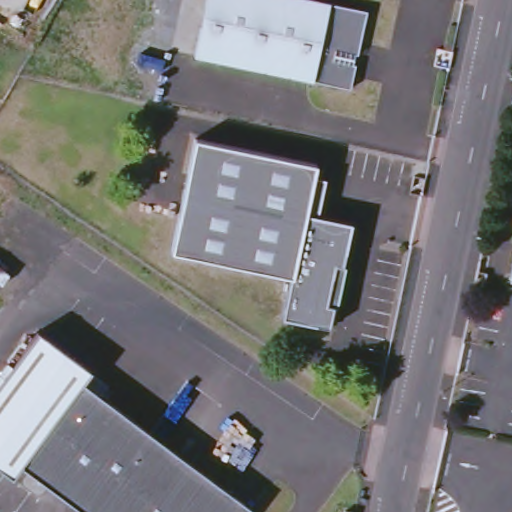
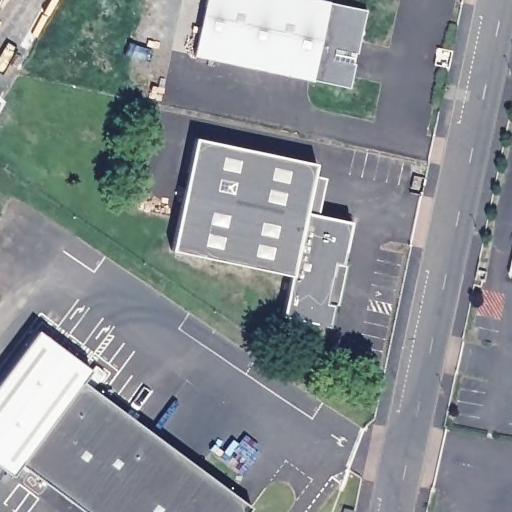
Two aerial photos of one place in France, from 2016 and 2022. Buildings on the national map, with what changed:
unchanged [(202,0),(333,0),(363,6),(354,50),(346,49),(344,59),(352,60),(347,85),(191,51),(202,0)]
unchanged [(0,102),(0,98),(2,100),(0,102)]
unchanged [(322,322),(277,313),(286,272),(167,246),(191,134),(312,160),(310,171),(321,174),(313,211),(347,218),(337,260),(340,261),(331,301),(327,301),(322,322)]
unchanged [(512,245),(512,276),(506,275),(512,245)]
unchanged [(93,369),(85,380),(21,463),(13,473),(0,464),(0,379),(40,328),(93,369)]
unchanged [(251,508),(248,512),(84,512),(21,463),(85,380),(251,508)]
unchanged [(345,512),(342,512),(342,511),(345,512)]

